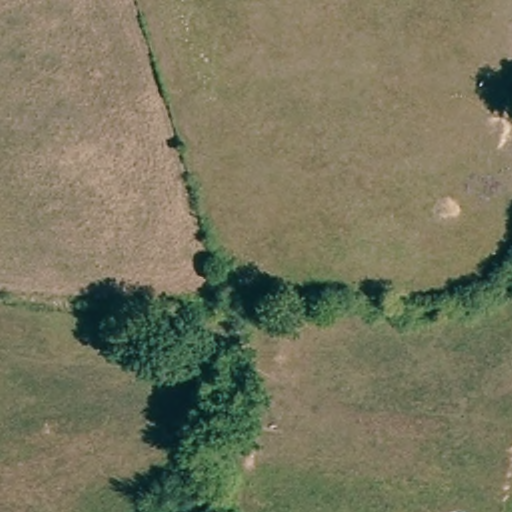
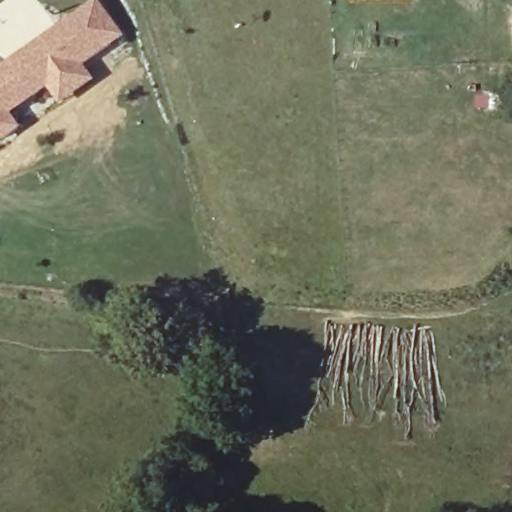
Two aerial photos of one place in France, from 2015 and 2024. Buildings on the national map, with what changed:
new [(99,0),(127,37),(87,67),(97,81),(62,106),(50,90),(17,115),(27,130),(4,145),(0,140),(0,70),(95,0),(99,0)]
new [(352,2),(352,0),(422,0),(422,2),(352,2)]

